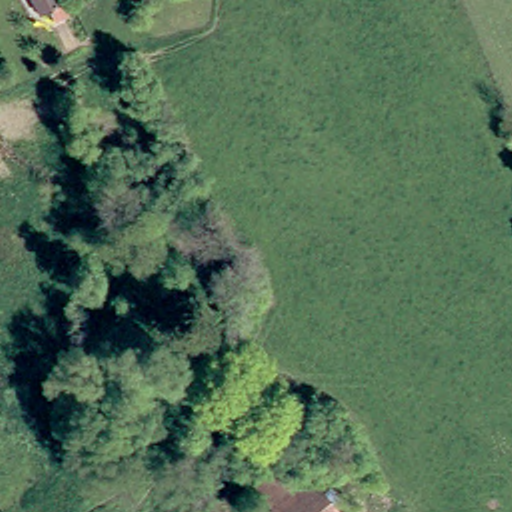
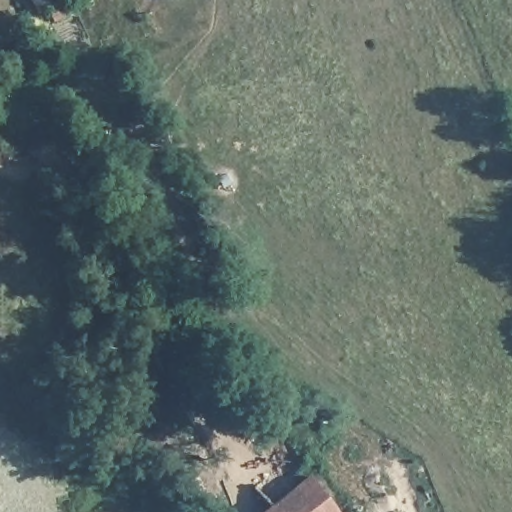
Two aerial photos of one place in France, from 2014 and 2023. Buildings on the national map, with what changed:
unchanged [(52,27),(48,15),(36,19),(30,0),(57,0),(65,22),(52,27)]
unchanged [(273,512),(276,510),(260,488),(285,470),(300,491),(317,478),(343,512),(273,512)]

